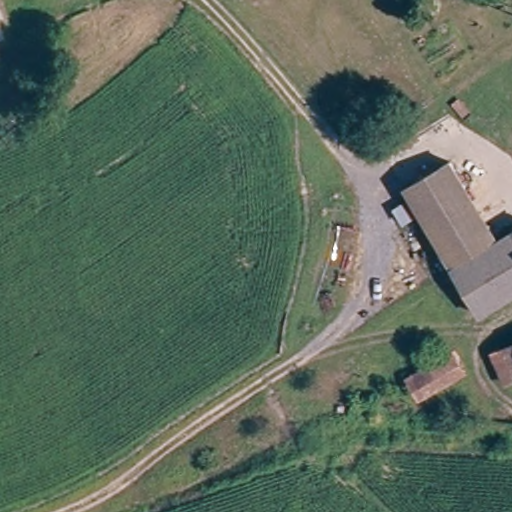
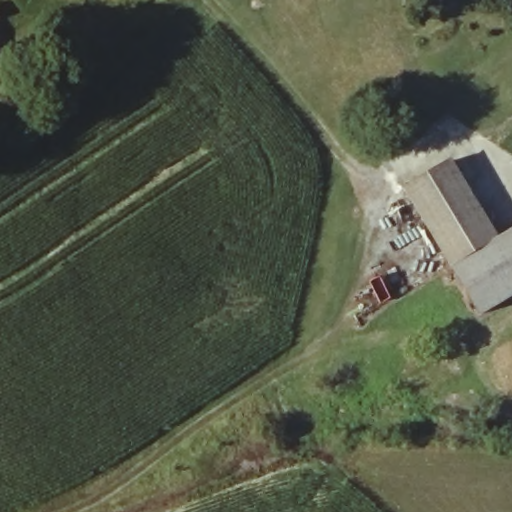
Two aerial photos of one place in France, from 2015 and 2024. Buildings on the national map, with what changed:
unchanged [(434,234),(403,183),(452,153),(482,204),(434,234)]
unchanged [(482,204),(498,234),(451,262),(434,234),(482,204)]
unchanged [(498,234),(512,226),(512,295),(494,307),(484,315),(456,268),(451,262),(498,234)]
unchanged [(493,347),(512,342),(512,379),(506,381),(493,347)]
unchanged [(452,356),(462,372),(417,396),(409,379),(452,356)]

